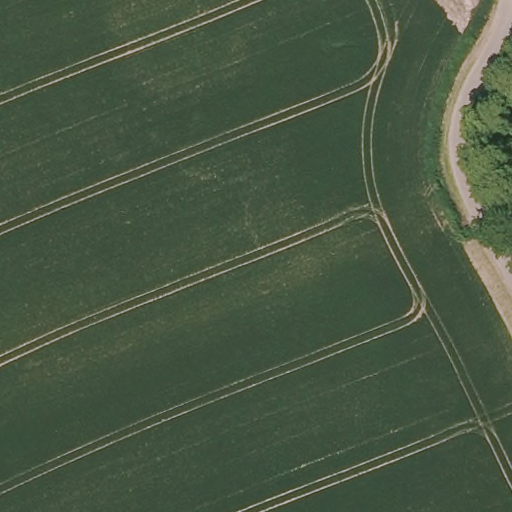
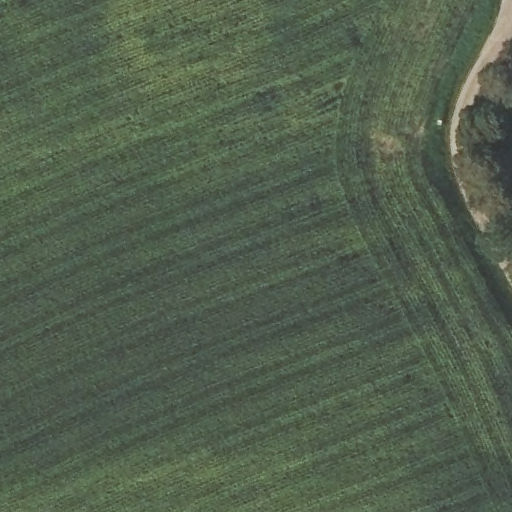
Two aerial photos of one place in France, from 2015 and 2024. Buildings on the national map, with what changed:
[]

